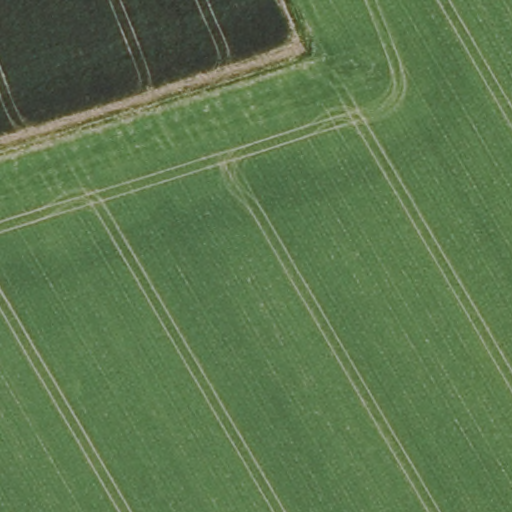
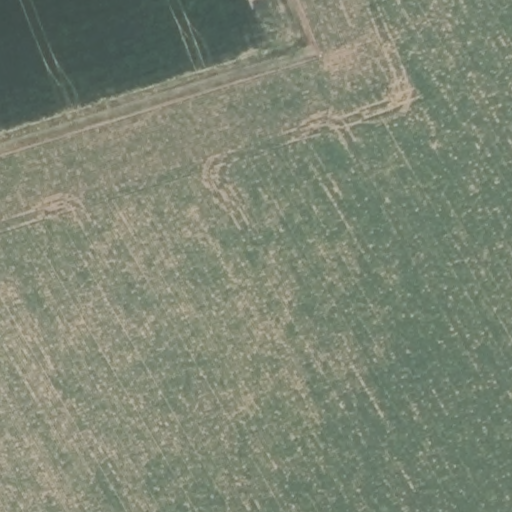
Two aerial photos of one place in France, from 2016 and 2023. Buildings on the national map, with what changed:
[]

